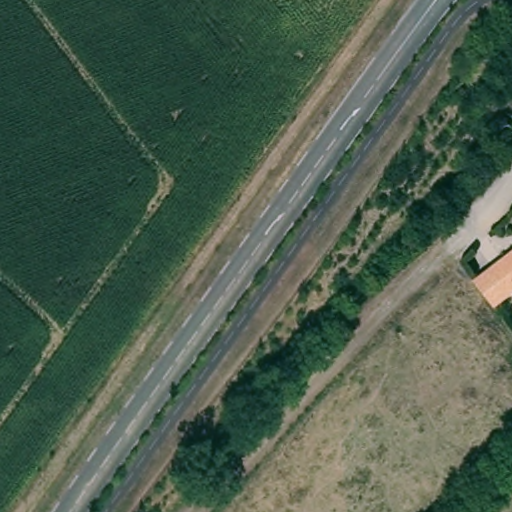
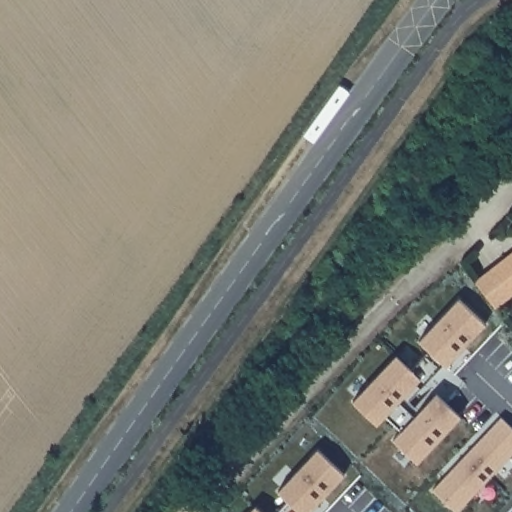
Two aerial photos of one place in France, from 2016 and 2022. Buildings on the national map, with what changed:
unchanged [(512,254),(512,293),(509,295),(510,297),(495,310),(475,283),(489,271),(512,254)]
new [(418,460),(393,439),(401,430),(385,412),(378,422),(354,400),(397,354),(411,367),(428,349),(419,341),(459,297),(484,322),(411,399),(419,409),(436,392),(458,414),(418,460)]
new [(512,426),(512,452),(457,509),(434,487),(502,416),(512,426)]
new [(289,500),(278,490),(318,448),(343,472),(307,512),(277,512),(289,500)]
new [(255,505),(262,512),(248,512),(255,505)]

